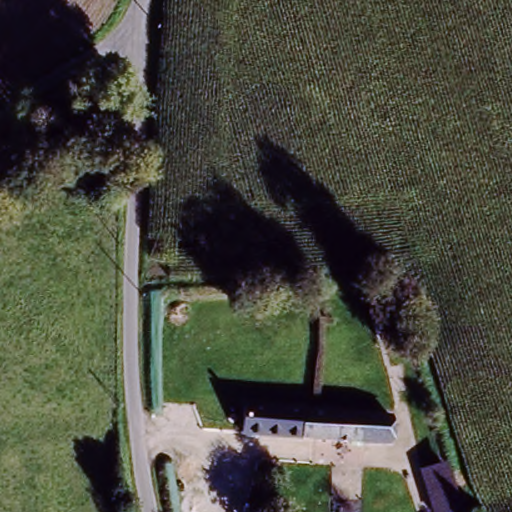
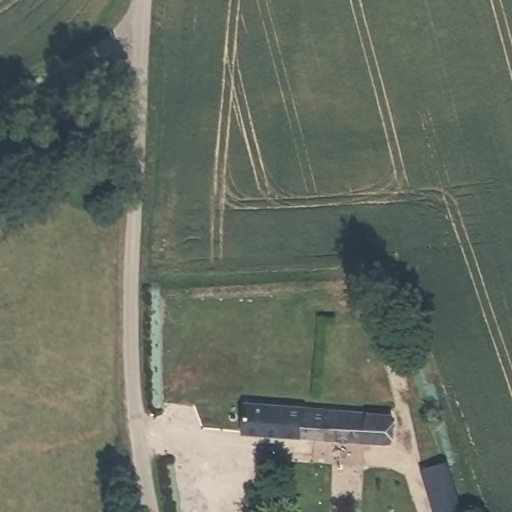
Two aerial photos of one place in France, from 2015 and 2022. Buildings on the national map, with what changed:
unchanged [(332,312),(332,293),(357,292),(358,312),(332,312)]
unchanged [(247,435),(249,403),(400,415),(397,446),(247,435)]
unchanged [(462,512),(433,512),(420,470),(448,461),(463,511),(462,512)]

